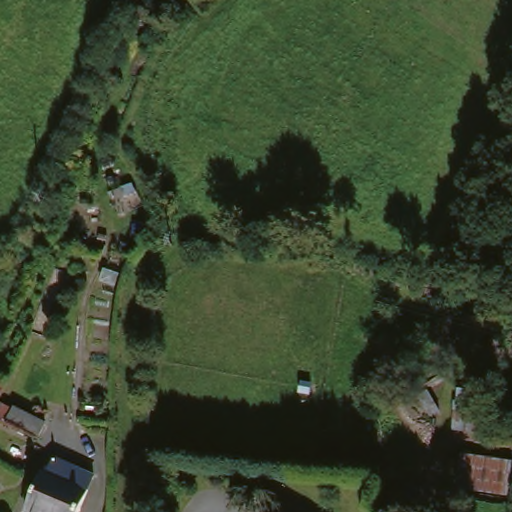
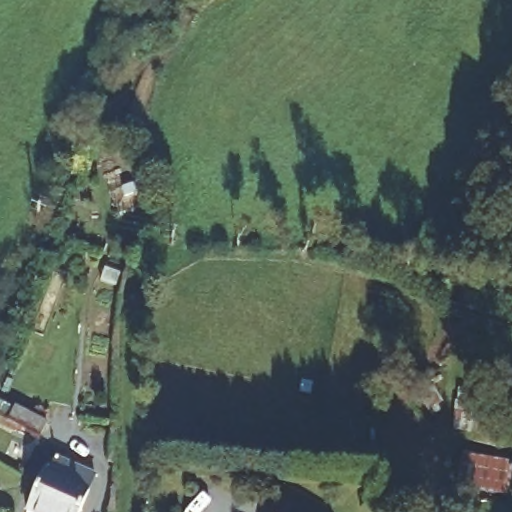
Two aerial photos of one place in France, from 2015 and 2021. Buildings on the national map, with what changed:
unchanged [(151,11),(144,28),(131,22),(137,7),(151,11)]
unchanged [(48,425),(39,440),(7,425),(16,407),(48,425)]
unchanged [(512,465),(508,496),(458,489),(463,456),(512,461),(512,465)]
unchanged [(89,512),(35,512),(48,480),(53,482),(61,464),(101,482),(89,512)]

